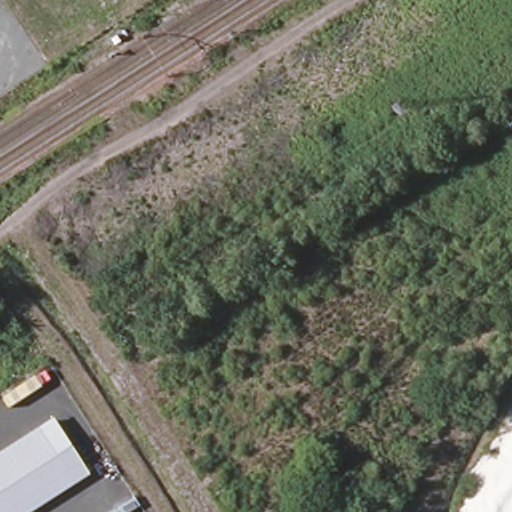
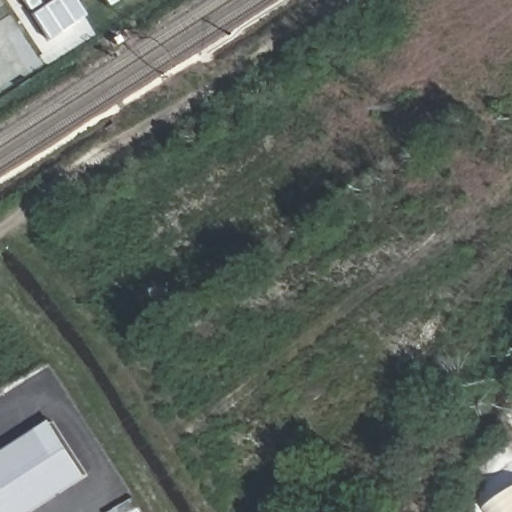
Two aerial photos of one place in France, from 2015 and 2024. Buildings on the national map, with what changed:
new [(26,9),(21,0),(37,0),(37,1),(26,9)]
new [(32,16),(56,0),(72,0),(83,16),(48,40),(32,16)]
new [(104,0),(116,0),(107,6),(104,0)]
unchanged [(49,419),(87,477),(33,512),(0,512),(0,451),(49,419)]
new [(512,512),(495,512),(492,508),(512,496),(512,512)]

